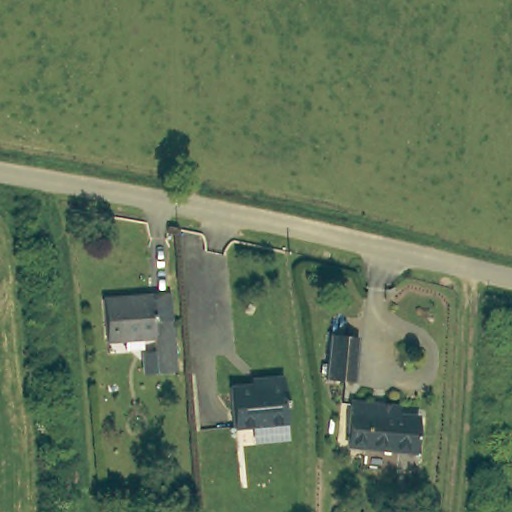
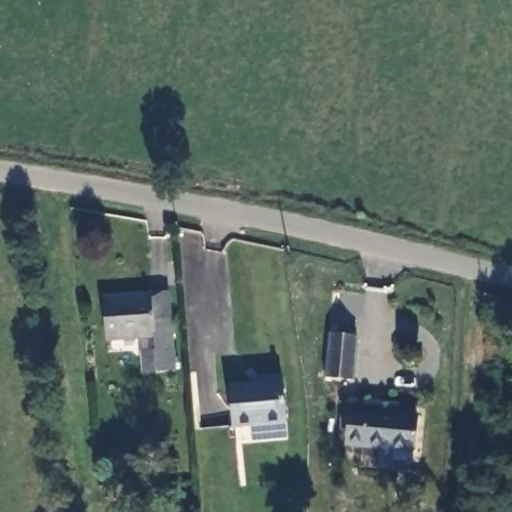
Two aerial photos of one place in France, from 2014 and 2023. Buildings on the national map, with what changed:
unchanged [(159,374),(156,340),(105,342),(104,304),(152,299),(155,325),(174,326),(176,373),(159,374)]
unchanged [(358,330),(352,376),(326,373),(330,327),(358,330)]
unchanged [(285,420),(235,420),(232,380),(262,379),(263,372),(285,373),(285,420)]
unchanged [(345,447),(347,416),(361,416),(362,409),(414,412),(410,450),(345,447)]

